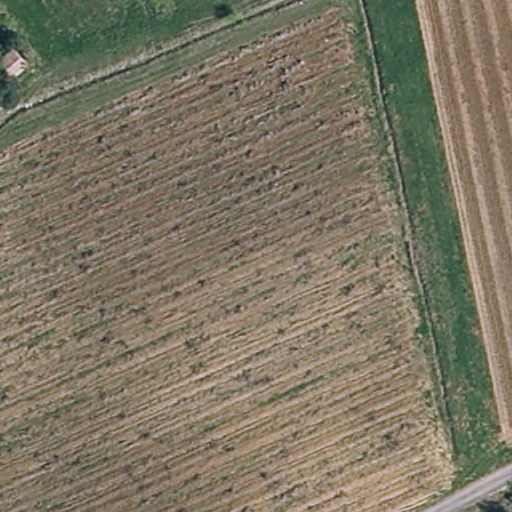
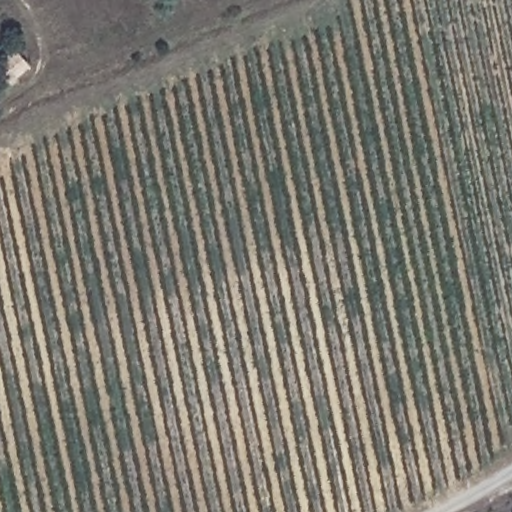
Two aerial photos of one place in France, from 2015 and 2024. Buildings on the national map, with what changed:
unchanged [(23,67),(8,82),(0,74),(0,60),(8,52),(23,67)]

